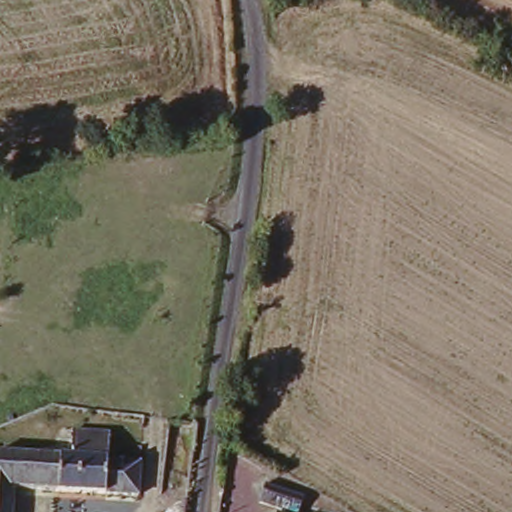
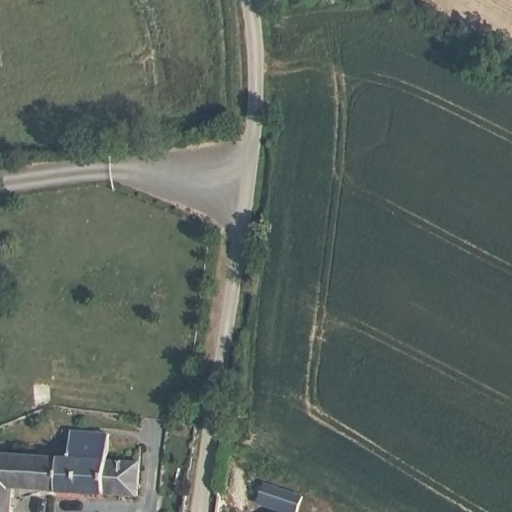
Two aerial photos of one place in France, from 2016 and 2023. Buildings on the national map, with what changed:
unchanged [(66,457),(69,435),(108,440),(105,462),(135,465),(132,496),(13,486),(11,512),(0,512),(0,451),(3,451),(66,457)]
unchanged [(307,504),(305,512),(258,512),(265,491),(307,504)]

